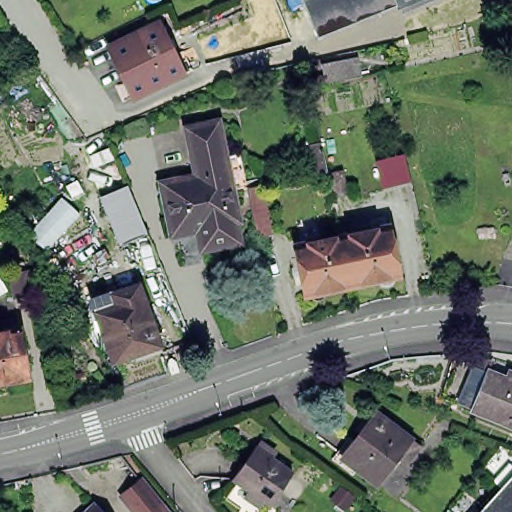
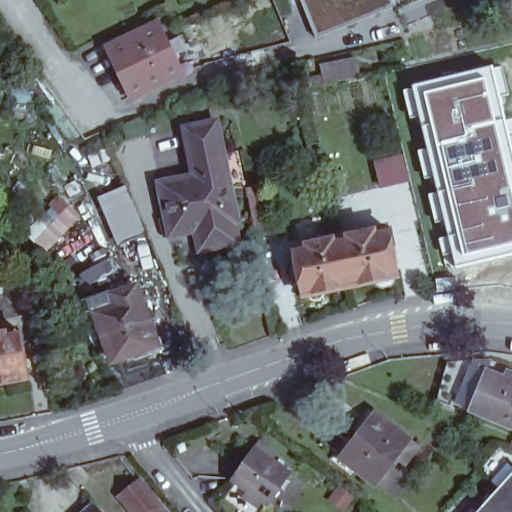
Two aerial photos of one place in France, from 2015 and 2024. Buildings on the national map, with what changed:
unchanged [(401,15),(398,6),(318,37),(303,0),(438,0),(401,15)]
unchanged [(124,80),(108,47),(157,22),(173,55),(182,74),(141,95),(133,99),(124,80)]
demolished [(273,69),(242,76),(229,51),(261,36),(268,56),(290,50),(310,45),(314,59),(293,64),(290,65),(273,69)]
unchanged [(319,86),(309,88),(306,78),(323,74),(322,68),(348,62),(357,60),(361,76),(351,78),(319,85),(319,86)]
new [(508,94),(501,96),(507,121),(512,145),(512,254),(453,267),(442,219),(440,220),(437,208),(431,209),(428,193),(435,191),(432,177),(424,178),(417,150),(425,148),(418,116),(409,119),(402,87),(501,64),(508,94)]
unchanged [(192,165),(185,133),(216,127),(223,159),(192,165)]
unchanged [(290,148),(320,142),(327,173),(331,196),(294,203),(289,180),(296,179),(290,148)]
new [(402,156),(409,180),(382,187),(376,162),(402,156)]
unchanged [(237,226),(234,227),(236,240),(238,247),(201,255),(196,235),(171,240),(160,188),(195,181),(192,165),(223,159),(237,226)]
unchanged [(126,176),(147,224),(121,235),(101,187),(126,176)]
unchanged [(262,184),(270,234),(255,237),(247,188),(262,184)]
unchanged [(386,227),(397,276),(393,276),(393,278),(392,282),(390,284),(389,285),(387,286),(385,286),(381,286),(379,285),(378,284),(377,282),(376,280),(350,286),(345,261),(340,236),(386,227)]
unchanged [(345,261),(350,286),(325,291),(324,295),(323,297),(322,298),(321,299),(319,300),(315,301),(311,299),(309,298),(307,294),(304,296),(293,246),(340,236),(345,261)]
unchanged [(9,293),(4,268),(23,265),(28,290),(9,293)]
unchanged [(1,286),(0,287),(0,284),(1,286)]
unchanged [(101,313),(97,302),(118,295),(141,286),(165,351),(140,360),(138,353),(118,361),(111,341),(100,345),(85,321),(101,314),(101,313)]
unchanged [(23,329),(31,373),(27,379),(0,384),(0,333),(23,329)]
unchanged [(487,371),(512,382),(512,427),(471,409),(487,371)]
unchanged [(379,417),(419,447),(405,464),(396,457),(375,483),(341,457),(364,428),(375,413),(379,417)]
unchanged [(268,505),(262,501),(247,491),(232,480),(255,447),(291,472),(268,505)]
unchanged [(501,489),(512,478),(512,500),(499,488),(500,488),(501,489)]
unchanged [(145,481),(170,512),(138,512),(126,496),(145,481)]
unchanged [(488,512),(482,506),(483,506),(485,508),(500,490),(499,489),(499,488),(512,500),(512,512),(488,512)]
unchanged [(481,512),(484,509),(482,507),(482,506),(488,512),(481,512)]
unchanged [(90,512),(93,509),(96,512),(90,512)]

